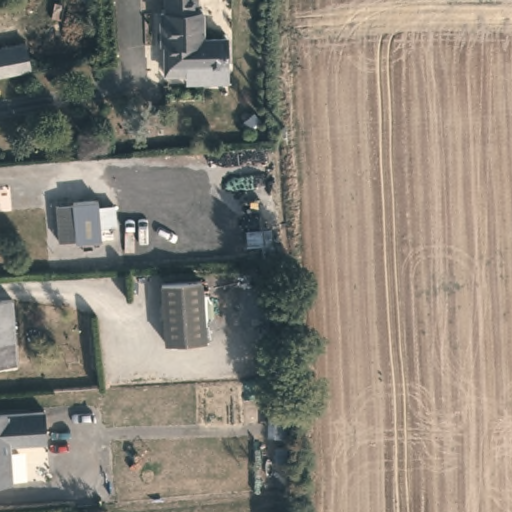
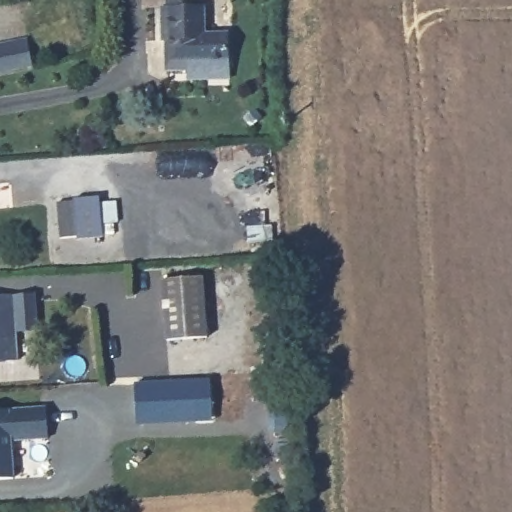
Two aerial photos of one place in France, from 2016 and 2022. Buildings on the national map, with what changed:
unchanged [(186,70),(167,71),(167,40),(161,40),(161,9),(166,9),(166,0),(199,0),(199,7),(204,7),(205,34),(228,34),(227,62),(205,63),(205,70),(186,70)]
unchanged [(0,73),(0,45),(26,40),(32,67),(0,73)]
unchanged [(77,239),(77,236),(60,237),(57,203),(73,202),(74,199),(99,196),(100,202),(115,201),(117,222),(102,223),(102,236),(77,239)]
unchanged [(162,280),(202,277),(207,337),(167,341),(162,280)]
unchanged [(12,295),(17,361),(0,362),(0,295),(12,295)]
unchanged [(268,324),(285,323),(288,368),(272,368),(268,324)]
new [(210,378),(212,421),(136,425),(134,382),(210,378)]
unchanged [(44,407),(47,437),(10,440),(12,477),(0,479),(0,410),(44,407)]

